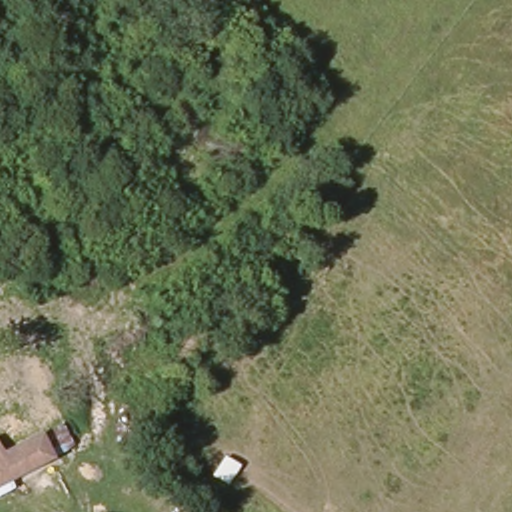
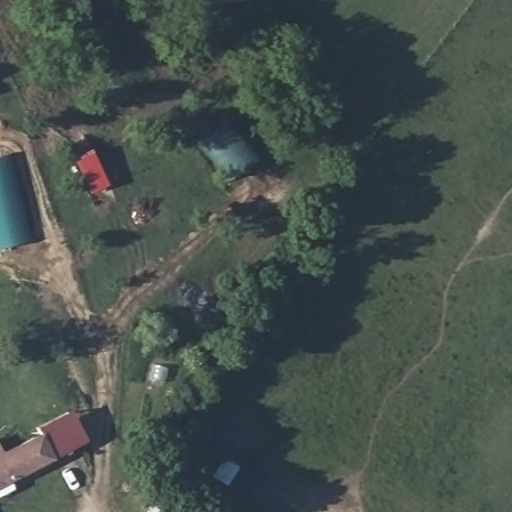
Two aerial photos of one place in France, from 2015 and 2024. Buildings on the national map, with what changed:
new [(30,241),(0,249),(0,155),(7,153),(30,241)]
unchanged [(61,427),(65,434),(74,449),(11,483),(9,479),(7,475),(0,464),(0,459),(7,455),(61,427)]
new [(0,459),(0,445),(7,455),(0,459)]
new [(9,479),(0,485),(0,464),(7,475),(9,479)]

